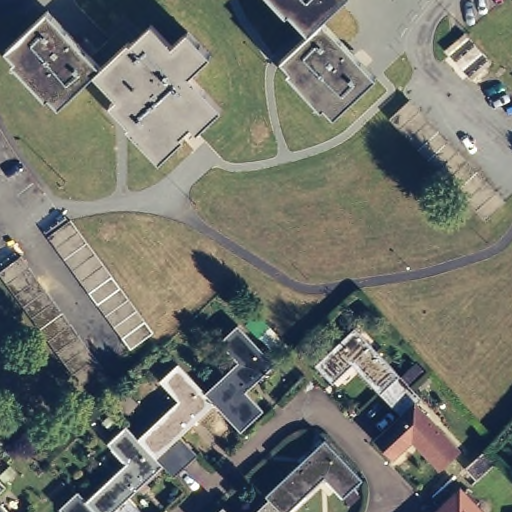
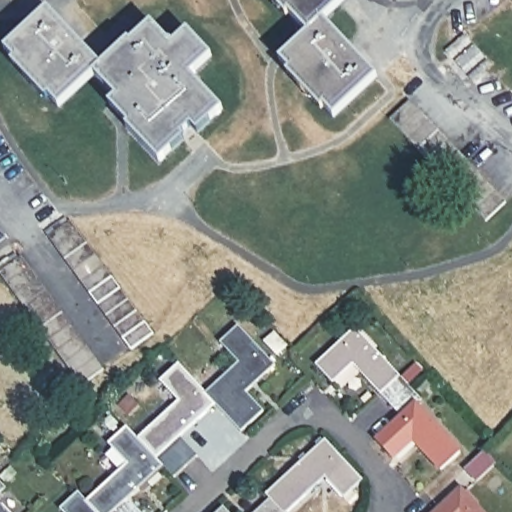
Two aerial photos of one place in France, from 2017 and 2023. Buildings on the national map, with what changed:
unchanged [(320,17),(373,74),(333,112),(279,56),(306,30),(279,0),(337,0),(320,17)]
unchanged [(48,10),(100,63),(126,37),(131,40),(149,23),(171,44),(186,29),(208,51),(189,71),(219,103),(193,129),(188,125),(183,131),(184,132),(159,156),(127,123),(129,120),(110,101),(116,94),(92,71),(61,99),(10,47),(48,10)]
unchanged [(487,223),(469,204),(391,120),(410,102),(488,185),(506,204),(487,223)]
unchanged [(69,221),(153,335),(131,350),(48,237),(69,221)]
unchanged [(103,370),(82,386),(0,273),(0,272),(21,257),(103,370)]
unchanged [(236,357),(218,337),(237,320),(273,358),(247,384),(265,403),(241,426),(216,398),(205,387),(236,357)]
unchanged [(409,385),(390,402),(353,364),(334,381),(316,362),(354,326),(409,385)]
unchanged [(188,465),(176,476),(162,462),(125,423),(128,421),(138,432),(178,396),(160,377),(178,359),(205,387),(216,398),(179,433),(199,454),(188,465)]
unchanged [(392,456),(374,437),(401,413),(390,402),(409,385),(419,397),(414,402),(458,450),(439,467),(412,439),(392,456)]
unchanged [(109,512),(102,512),(79,489),(81,487),(89,495),(128,459),(109,438),(125,423),(162,462),(125,496),(141,512),(122,512),(115,505),(109,512)]
unchanged [(358,478),(340,495),(323,477),(286,512),(285,512),(269,495),(266,491),(321,439),(358,478)]
unchanged [(474,450),(483,459),(466,476),(457,466),(474,450)]
unchanged [(0,487),(0,473),(6,480),(0,487)]
unchanged [(79,489),(102,512),(67,512),(61,505),(79,489)]
unchanged [(482,512),(436,512),(460,490),(482,512)]
unchanged [(0,512),(0,494),(17,512),(0,512)]
unchanged [(285,512),(251,512),(269,495),(285,512)]
unchanged [(122,512),(109,512),(115,505),(122,512)]
unchanged [(228,512),(217,512),(223,507),(228,512)]

